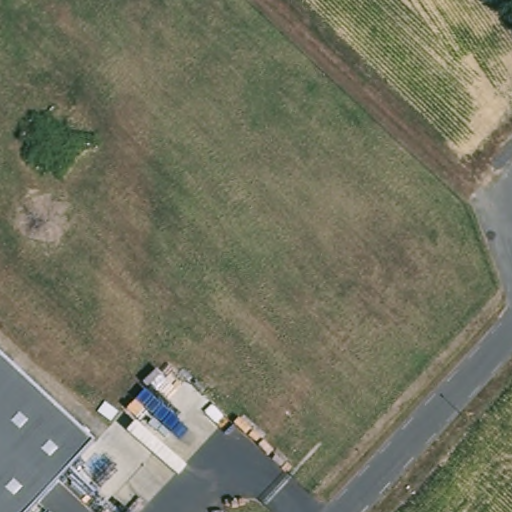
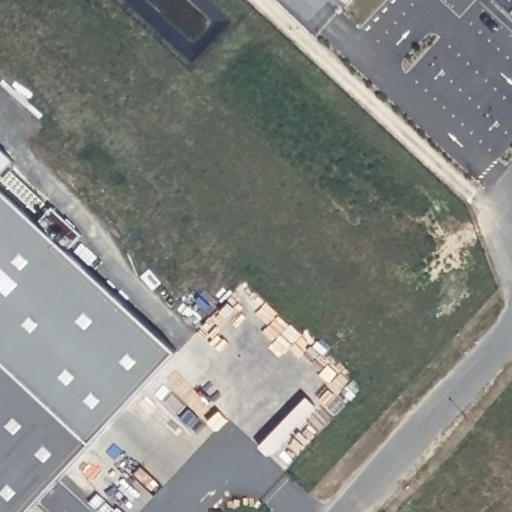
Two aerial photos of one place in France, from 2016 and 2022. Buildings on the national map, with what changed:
new [(512,0),(512,9),(502,0),(512,0)]
new [(179,349),(92,442),(0,356),(0,184),(179,349)]
unchanged [(27,512),(0,512),(0,356),(92,442),(27,512)]

